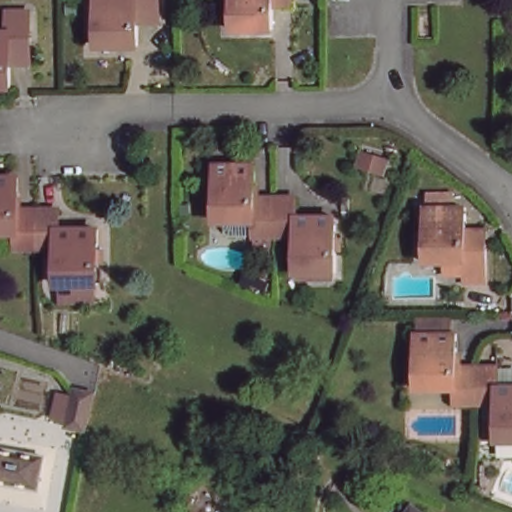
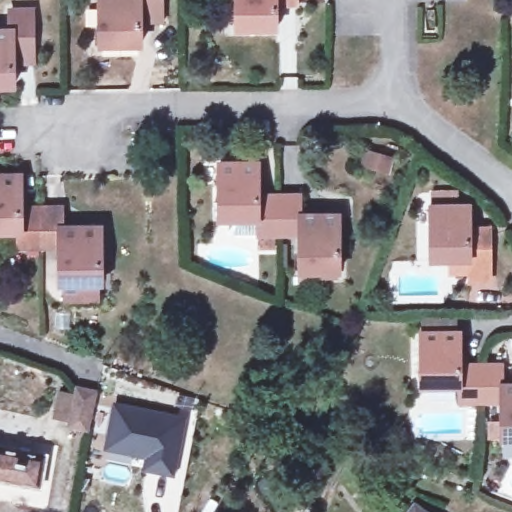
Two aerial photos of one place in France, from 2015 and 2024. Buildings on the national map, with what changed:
unchanged [(141,25),(141,45),(102,45),(102,0),(161,0),(161,6),(161,25),(141,25)]
unchanged [(277,11),(279,35),(236,35),(235,0),(297,0),(297,11),(277,11)]
unchanged [(14,70),(15,89),(0,89),(0,31),(15,30),(15,10),(33,10),(34,52),(34,70),(14,70)]
unchanged [(255,170),(256,200),(275,200),(296,199),(296,220),(338,219),(340,273),(297,274),(296,238),(275,239),(252,240),(251,221),(216,221),(214,170),(255,170)]
unchanged [(16,179),(15,211),(28,211),(38,210),(59,210),(60,229),(99,229),(101,287),(61,287),(60,250),(39,250),(18,250),(17,237),(0,237),(0,179),(16,179)]
unchanged [(468,203),(470,242),(489,242),(490,276),(462,276),(462,257),(430,258),(429,206),(468,203)]
unchanged [(500,410),(477,406),(457,402),(460,383),(422,377),(432,322),(435,323),(437,308),(470,316),(469,330),(472,330),(467,361),(485,365),(505,368),(504,387),(512,389),(512,449),(492,445),(500,410)]
unchanged [(84,405),(80,425),(63,422),(68,387),(86,390),(84,405)]
new [(140,470),(143,457),(102,449),(113,402),(186,416),(173,477),(140,470)]
unchanged [(43,485),(0,479),(0,447),(47,455),(43,485)]
unchanged [(415,512),(411,512),(413,510),(415,512)]

